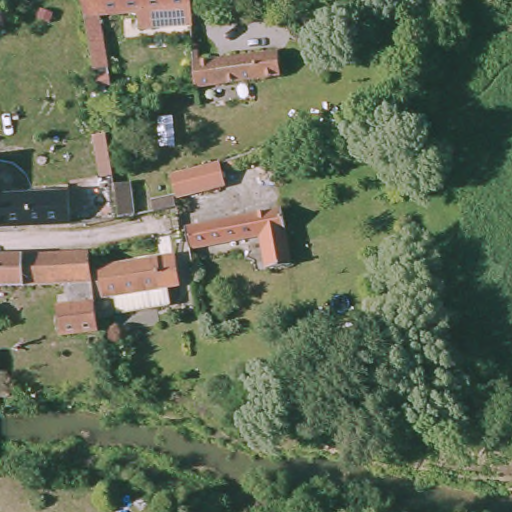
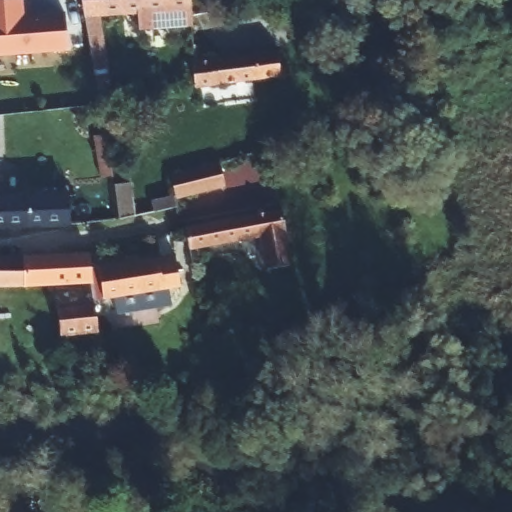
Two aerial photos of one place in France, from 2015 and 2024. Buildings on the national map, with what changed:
new [(25,18),(61,16),(67,53),(0,58),(0,1),(7,0),(24,0),(25,18)]
unchanged [(187,21),(137,27),(135,22),(119,23),(117,11),(92,13),(97,45),(93,49),(96,67),(102,69),(105,80),(98,82),(101,97),(95,98),(77,0),(186,0),(187,21)]
unchanged [(196,82),(192,55),(270,46),(274,71),(219,79),(196,82)]
unchanged [(117,174),(107,175),(100,131),(110,130),(117,174)]
unchanged [(168,177),(175,175),(223,163),(227,177),(205,181),(206,188),(172,194),(168,177)]
unchanged [(67,218),(0,222),(0,194),(66,191),(67,218)]
unchanged [(279,229),(284,262),(260,266),(255,233),(183,245),(180,226),(178,226),(178,219),(268,205),(277,204),(280,229),(279,229)]
unchanged [(85,279),(22,285),(0,286),(0,254),(82,251),(85,279)]
unchanged [(163,307),(112,314),(110,310),(107,297),(97,298),(92,269),(170,258),(175,286),(163,287),(165,300),(163,307)]
unchanged [(89,313),(92,332),(55,335),(52,306),(87,301),(89,313)]

